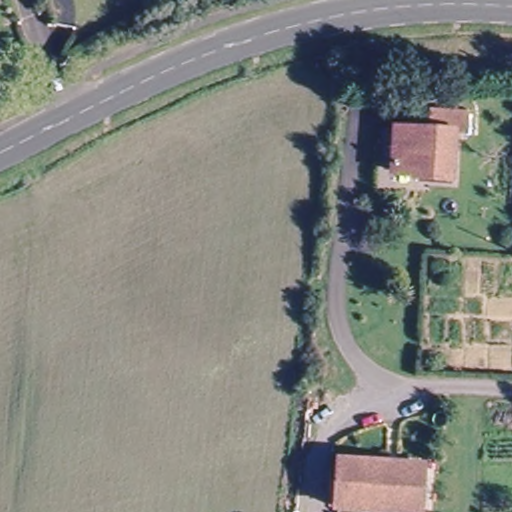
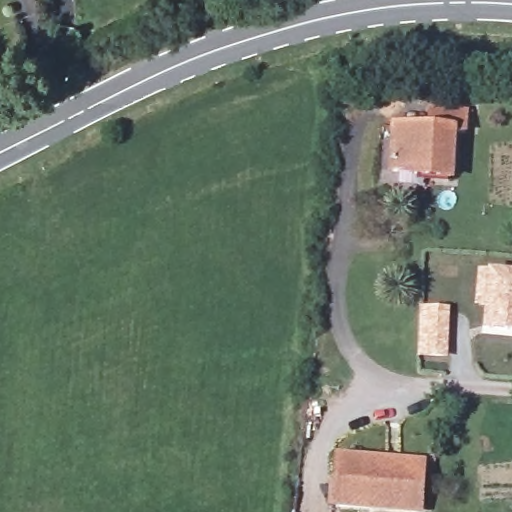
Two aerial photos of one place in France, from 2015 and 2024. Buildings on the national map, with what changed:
unchanged [(415,177),(390,177),(392,131),(426,131),(427,114),(459,116),(459,135),(450,135),(450,183),(415,182),(415,177)]
new [(512,273),(512,335),(483,333),(484,307),(476,307),(479,270),(512,273)]
new [(420,307),(451,307),(449,360),(418,359),(420,307)]
unchanged [(424,512),(342,512),(330,511),(336,451),(428,459),(424,512)]

